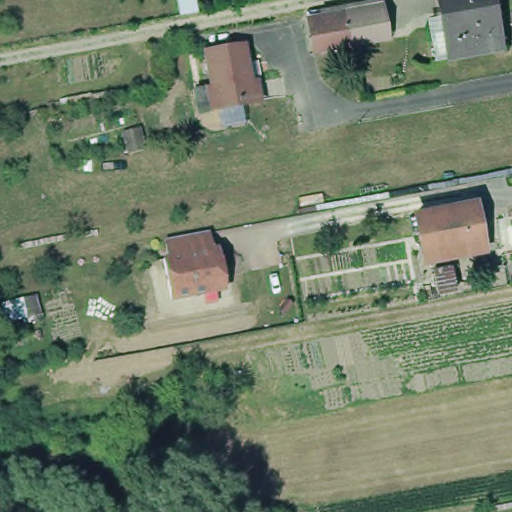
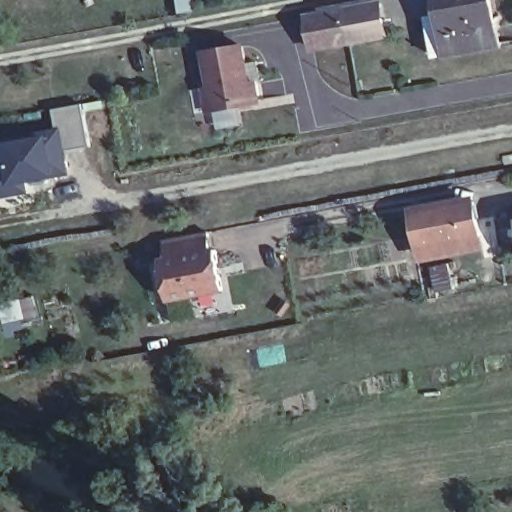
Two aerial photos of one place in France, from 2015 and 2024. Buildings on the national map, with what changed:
unchanged [(448,57),(435,60),(432,42),(428,25),(442,22),(437,0),(489,0),(492,22),(494,31),(497,48),(490,49),(448,57)]
unchanged [(349,8),(387,2),(392,35),(355,42),(349,8)]
unchanged [(320,49),(313,15),(333,11),(349,8),(355,42),(320,49)]
unchanged [(243,77),(236,78),(205,84),(200,57),(238,50),(243,77)]
unchanged [(187,95),(200,92),(207,91),(205,84),(236,78),(243,77),(245,86),(250,85),(254,107),(204,116),(192,118),(187,95)]
new [(57,109),(88,105),(95,146),(64,151),(58,124),(57,109)]
new [(58,124),(64,151),(71,184),(0,200),(0,138),(58,124)]
unchanged [(437,206),(473,199),(478,235),(420,246),(414,211),(437,206)]
unchanged [(210,235),(213,252),(217,252),(225,292),(171,302),(163,262),(168,261),(165,243),(210,235)]
unchanged [(449,261),(455,290),(437,293),(430,264),(449,261)]

